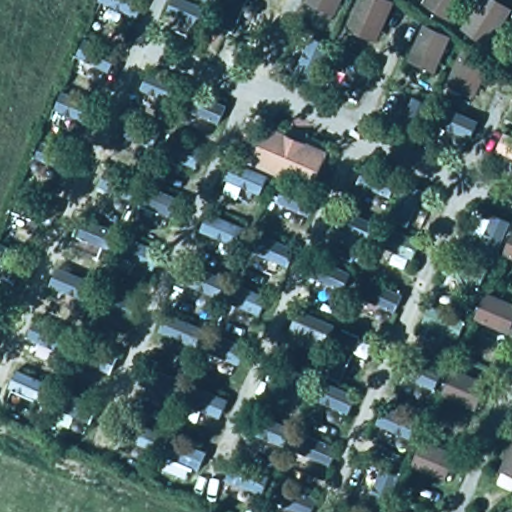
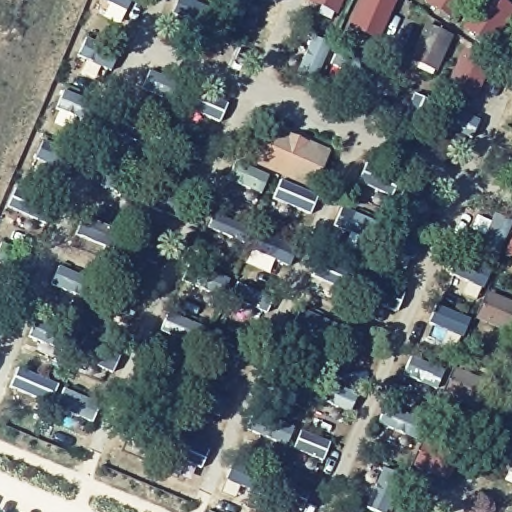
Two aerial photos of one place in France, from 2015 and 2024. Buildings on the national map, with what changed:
unchanged [(311,190),(247,163),(265,119),(327,151),(311,190)]

